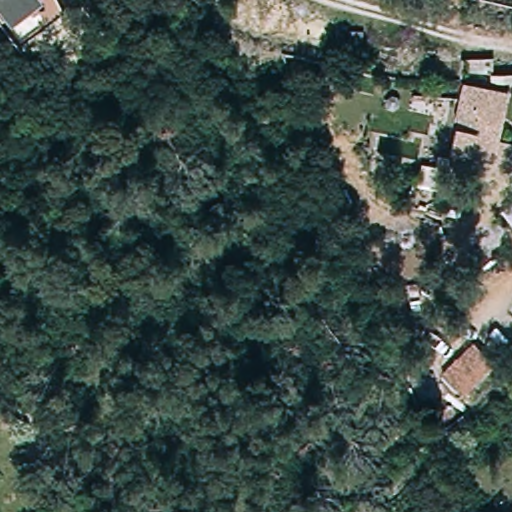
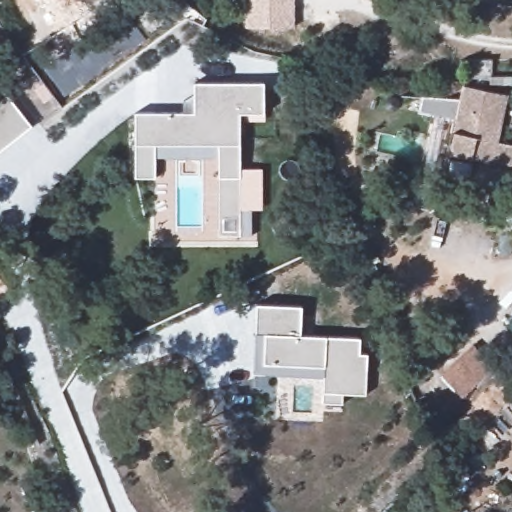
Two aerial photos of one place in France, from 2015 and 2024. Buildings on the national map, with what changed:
unchanged [(12,31),(0,15),(0,0),(37,0),(41,6),(12,31)]
new [(260,26),(245,26),(245,0),(291,0),(291,26),(260,26)]
new [(183,97),(194,97),(195,79),(265,81),(264,112),(241,111),(238,234),(216,234),(218,142),(154,140),(153,174),(134,174),(135,107),(183,109),(183,97)]
unchanged [(489,162),(448,155),(461,88),(502,96),(489,162)]
new [(34,122),(0,150),(0,99),(9,91),(34,122)]
new [(502,212),(512,204),(512,227),(502,212)]
new [(257,301),(303,302),(301,331),(361,333),(361,349),(369,349),(367,390),(344,389),(344,400),(324,398),(325,372),(255,370),(256,331),(257,301)]
unchanged [(474,348),(493,371),(459,400),(440,376),(474,348)]

